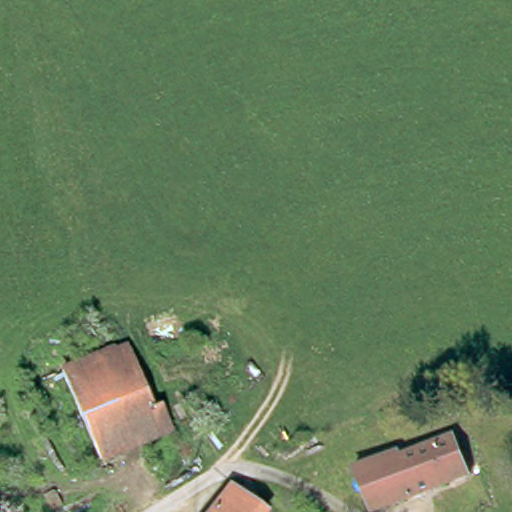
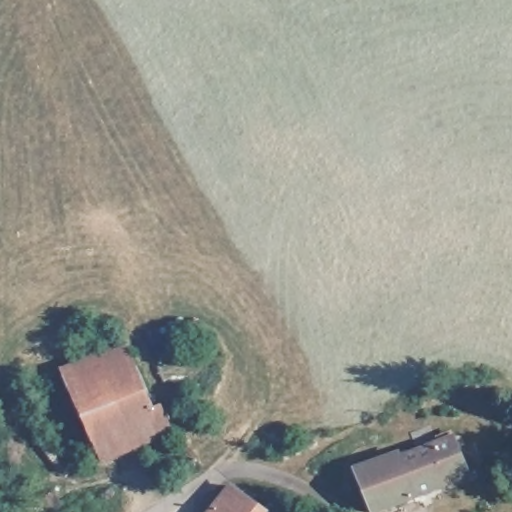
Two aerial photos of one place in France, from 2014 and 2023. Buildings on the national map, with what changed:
unchanged [(151,404),(157,402),(170,427),(97,456),(57,369),(122,339),(151,404)]
unchanged [(350,467),(396,451),(397,454),(450,436),(466,472),(395,500),(370,509),(350,467)]
unchanged [(259,508),(256,512),(203,512),(223,483),(259,508)]

